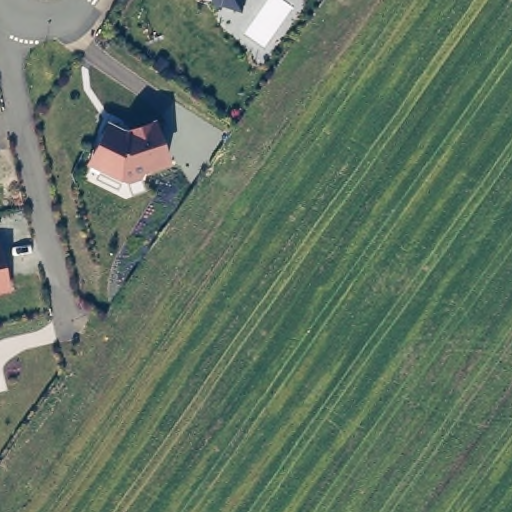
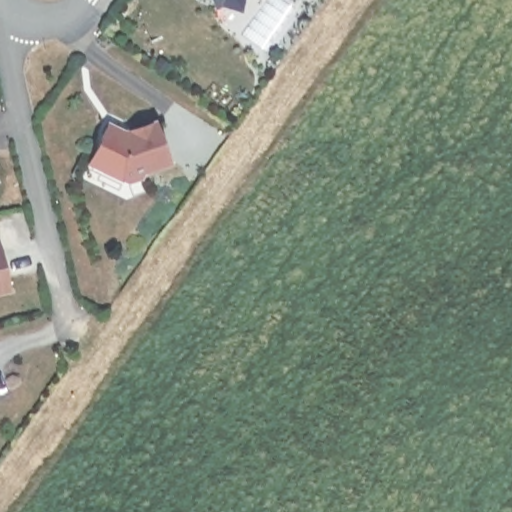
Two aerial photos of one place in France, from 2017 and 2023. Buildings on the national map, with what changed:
unchanged [(240,12),(220,4),(215,8),(208,0),(241,0),(240,12)]
unchanged [(169,164),(126,181),(85,163),(106,122),(127,132),(155,120),(169,164)]
unchanged [(0,291),(0,254),(10,288),(0,291)]

